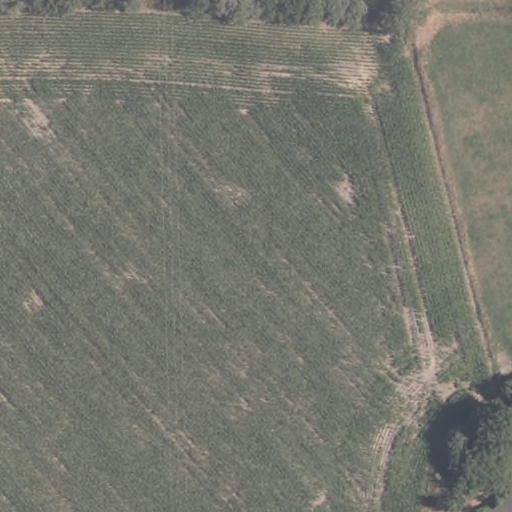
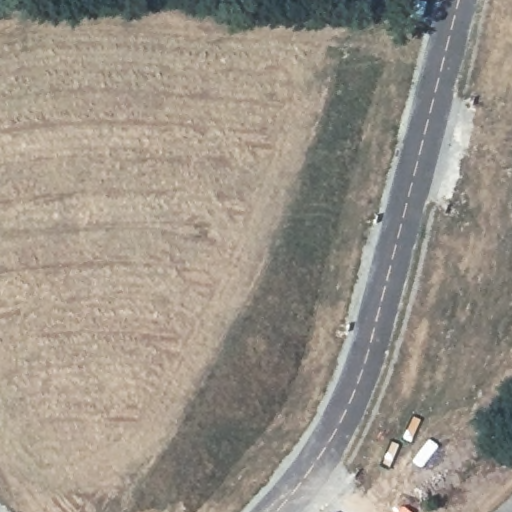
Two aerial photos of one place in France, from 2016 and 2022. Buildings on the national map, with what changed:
unchanged [(512,512),(493,512),(512,495),(512,512)]

